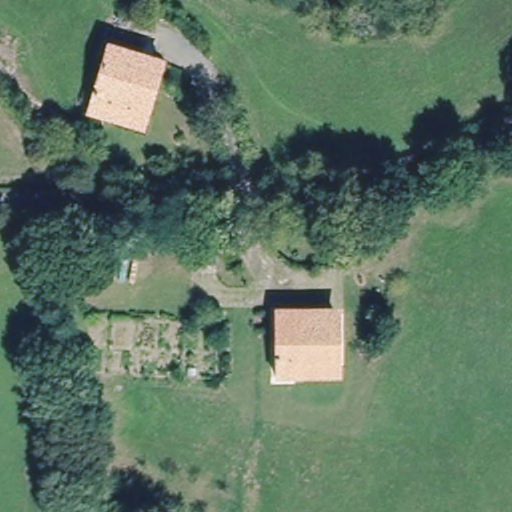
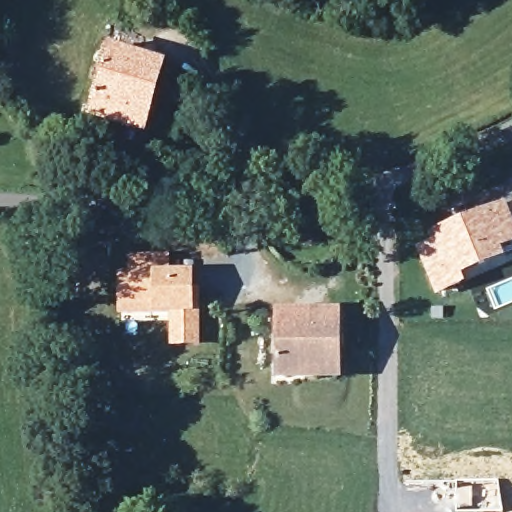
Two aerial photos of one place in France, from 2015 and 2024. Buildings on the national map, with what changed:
unchanged [(90,114),(94,102),(110,48),(164,64),(158,83),(148,118),(144,117),(140,129),(90,114)]
unchanged [(59,138),(45,127),(54,115),(68,125),(59,138)]
new [(507,202),(509,205),(512,204),(512,245),(503,249),(506,258),(463,276),(466,283),(435,295),(414,243),(443,227),(507,202)]
new [(118,255),(170,255),(170,268),(194,269),(196,312),(200,312),(201,346),(169,347),(168,314),(117,313),(118,255)]
unchanged [(336,309),(338,371),(279,370),(276,311),(336,309)]

